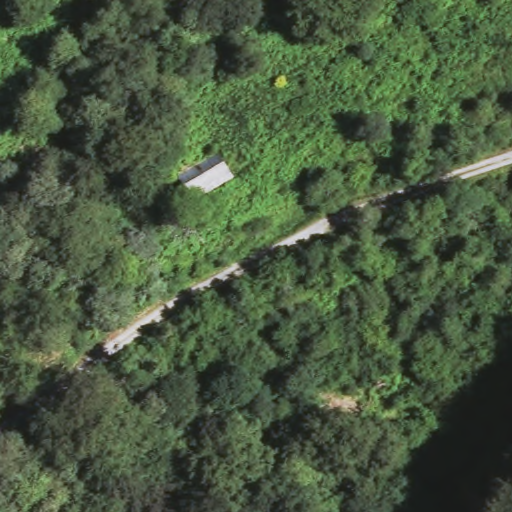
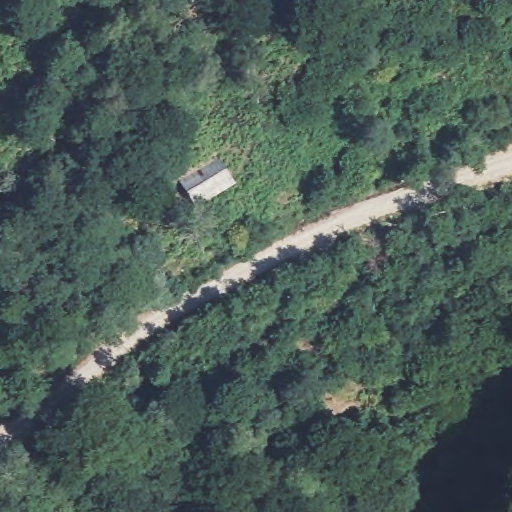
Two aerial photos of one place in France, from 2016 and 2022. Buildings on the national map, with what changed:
unchanged [(240,185),(211,201),(190,214),(174,187),(224,158),(240,185)]

